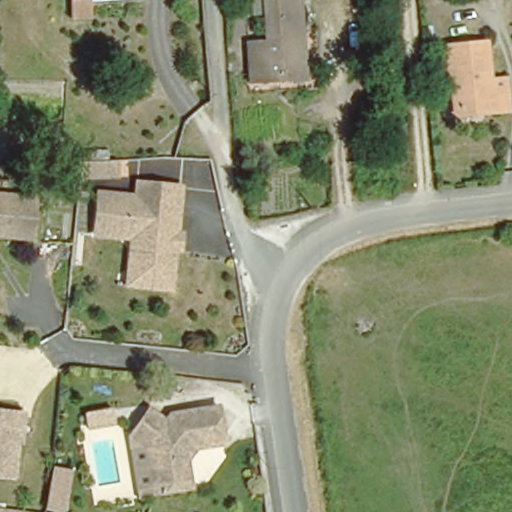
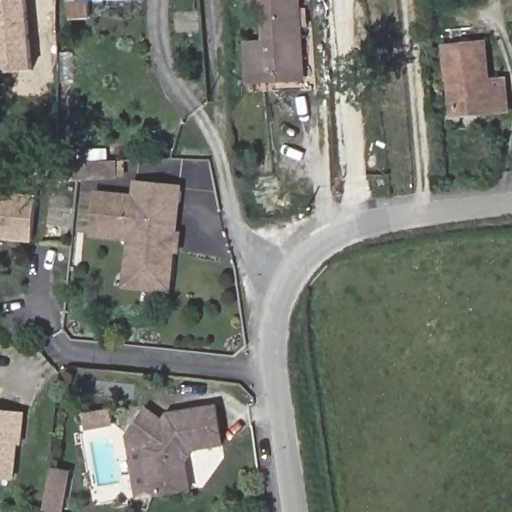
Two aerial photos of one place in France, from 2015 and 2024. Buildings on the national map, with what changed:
new [(0,73),(0,0),(29,0),(35,70),(0,73)]
unchanged [(314,80),(259,84),(256,46),(274,44),(271,0),(308,0),(314,80)]
unchanged [(444,79),(442,47),(482,44),(485,81),(501,79),(504,113),(489,115),(448,119),(444,79)]
unchanged [(101,165),(114,164),(115,179),(78,181),(79,166),(101,165)]
unchanged [(124,287),(125,273),(129,240),(92,237),(96,198),(133,202),(134,186),(177,190),(169,279),(168,292),(124,287)]
unchanged [(43,242),(0,238),(0,197),(46,202),(43,242)]
unchanged [(144,406),(160,418),(164,413),(214,406),(219,443),(180,449),(185,487),(148,493),(143,447),(124,432),(144,406)]
unchanged [(9,482),(0,480),(0,412),(20,415),(9,482)]
unchanged [(48,473),(63,474),(61,484),(59,512),(44,512),(47,483),(48,473)]

